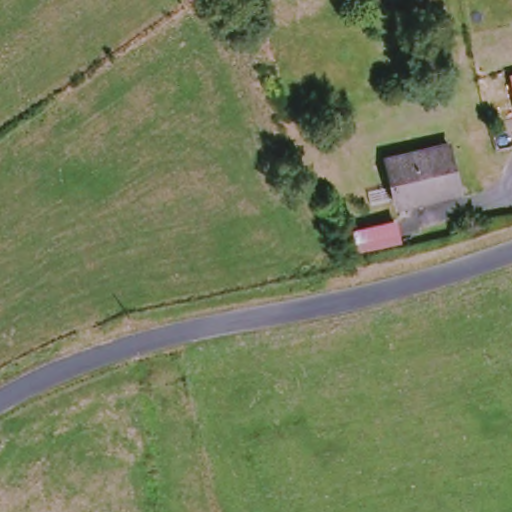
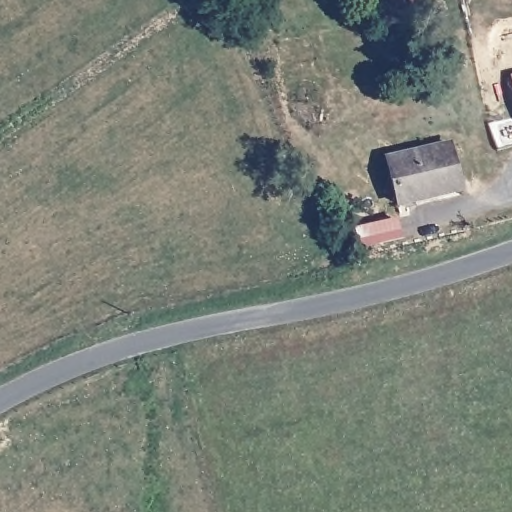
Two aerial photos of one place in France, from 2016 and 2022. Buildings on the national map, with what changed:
unchanged [(389,0),(420,0),(397,14),(389,0)]
unchanged [(390,202),(382,159),(447,145),(458,186),(390,202)]

